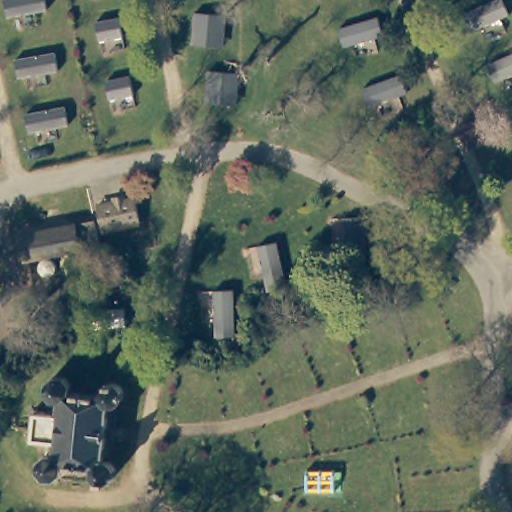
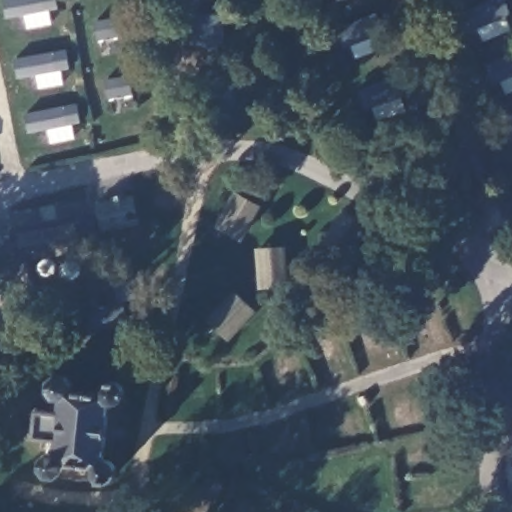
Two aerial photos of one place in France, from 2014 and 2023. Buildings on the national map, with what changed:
unchanged [(104,203),(111,202),(140,197),(145,224),(116,229),(109,230),(104,203)]
unchanged [(32,259),(27,232),(101,219),(105,246),(32,259)]
unchanged [(67,483),(66,475),(62,475),(59,482),(44,482),(37,473),(36,464),(48,454),(48,443),(31,442),(32,417),(52,418),(52,406),(50,406),(48,404),(46,402),(45,400),(44,397),(42,395),(42,392),(42,389),(44,387),(45,384),(46,382),(48,380),(51,378),(53,377),(56,376),(59,376),(61,377),(64,377),(66,378),(69,380),(71,382),(72,384),(73,387),(74,389),(74,392),(74,395),(74,396),(100,398),(100,397),(99,395),(99,393),(99,390),(100,388),(101,386),(102,385),(104,383),(105,382),(107,381),(109,380),(112,380),(114,380),(116,381),(117,382),(120,383),(121,385),(122,386),(123,388),(124,391),(124,393),(124,395),(123,397),(122,399),(121,401),(119,402),(117,404),(116,404),(114,405),(111,405),(109,405),(107,404),(105,404),(105,460),(114,463),(116,465),(117,466),(120,470),(120,472),(120,474),(120,478),(119,480),(117,481),(116,483),(112,485),(110,485),(108,486),(104,485),(104,481),(99,480),(97,485),(67,483)]

